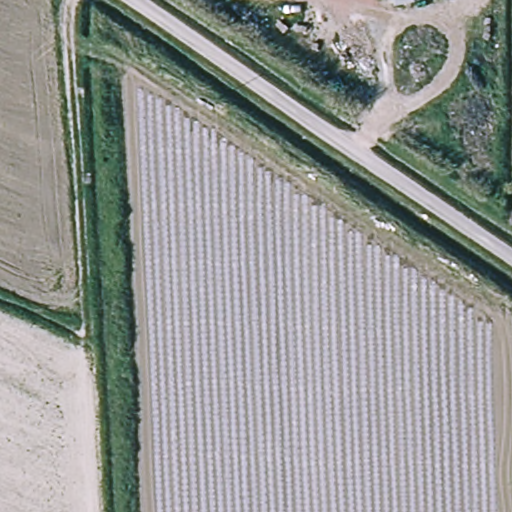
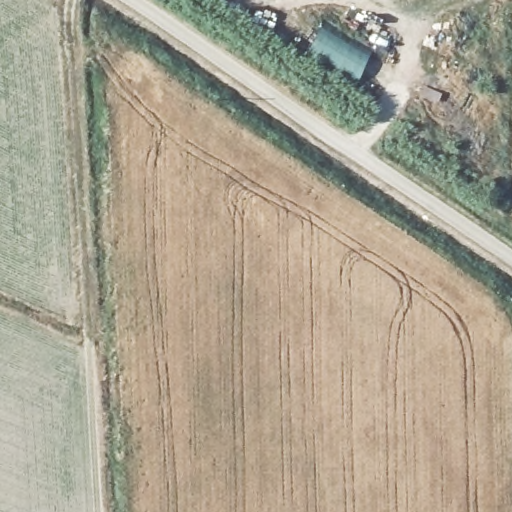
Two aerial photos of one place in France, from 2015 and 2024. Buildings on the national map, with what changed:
new [(372,52),(357,84),(307,55),(324,23),(372,52)]

